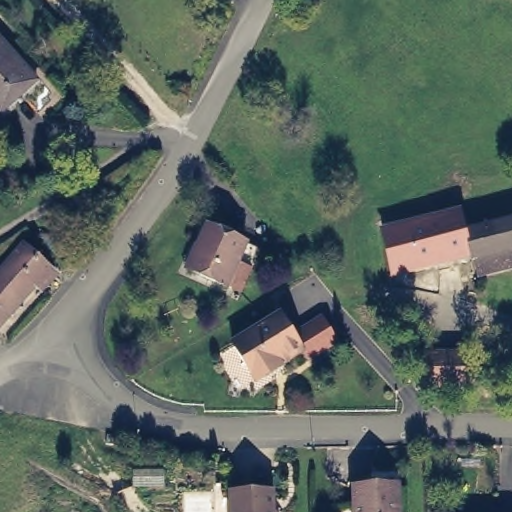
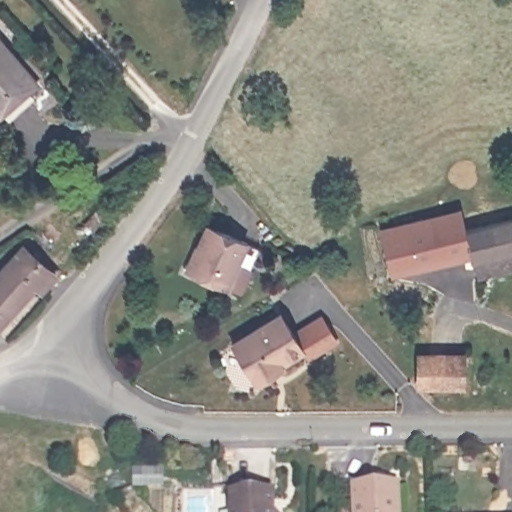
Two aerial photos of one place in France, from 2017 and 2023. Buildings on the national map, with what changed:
unchanged [(0,113),(0,41),(36,80),(0,113)]
unchanged [(479,261),(475,247),(474,243),(468,245),(455,249),(455,254),(438,258),(437,253),(392,263),(382,220),(457,201),(462,222),(512,208),(512,252),(479,261)]
unchanged [(227,283),(189,266),(207,222),(247,239),(227,283)]
unchanged [(45,286),(4,331),(0,328),(0,282),(32,246),(65,275),(51,290),(45,286)]
unchanged [(257,383),(255,379),(234,344),(282,314),(302,350),(282,363),(284,368),(257,383)]
unchanged [(462,384),(419,384),(419,355),(462,355),(462,384)]
unchanged [(354,487),(390,486),(391,512),(354,512),(354,487)]
unchanged [(227,493),(269,492),(269,512),(228,512),(227,493)]

